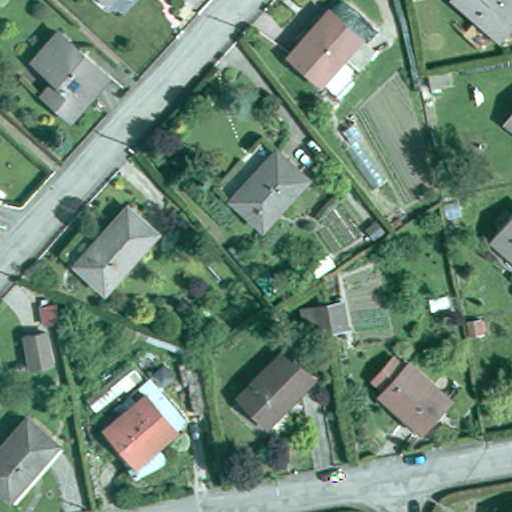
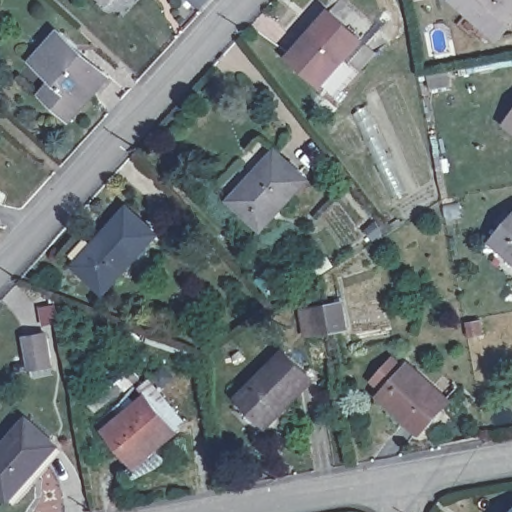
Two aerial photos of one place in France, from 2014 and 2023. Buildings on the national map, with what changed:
unchanged [(104,0),(111,0),(107,4),(104,0)]
unchanged [(455,0),(512,0),(512,23),(500,38),(455,0)]
unchanged [(330,6),(360,34),(344,54),(358,68),(335,94),(290,51),(330,6)]
unchanged [(55,80),(34,61),(59,32),(109,76),(72,119),(48,98),(43,93),(55,80)]
unchanged [(512,117),(512,127),(507,123),(512,117)]
unchanged [(277,151),(307,179),(264,224),(234,198),(277,151)]
unchanged [(127,208),(157,234),(107,292),(77,265),(127,208)]
unchanged [(492,239),(512,217),(512,256),(509,253),(492,239)]
unchanged [(317,309),(330,306),(346,303),(350,328),(335,330),(320,333),(317,309)]
unchanged [(46,334),(52,364),(32,369),(25,338),(46,334)]
unchanged [(285,351),(313,378),(267,424),(240,397),(285,351)]
unchanged [(412,361),(452,399),(421,432),(380,395),(412,361)]
unchanged [(25,364),(26,369),(19,371),(18,366),(25,364)]
unchanged [(102,440),(142,406),(135,398),(144,391),(179,433),(170,441),(131,474),(102,440)]
unchanged [(27,419),(57,445),(11,499),(0,489),(0,450),(27,419)]

